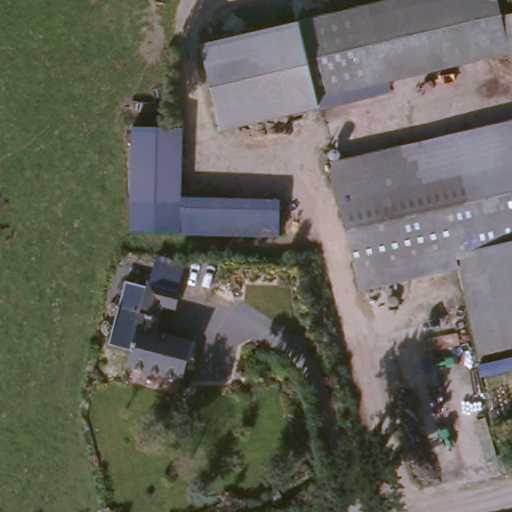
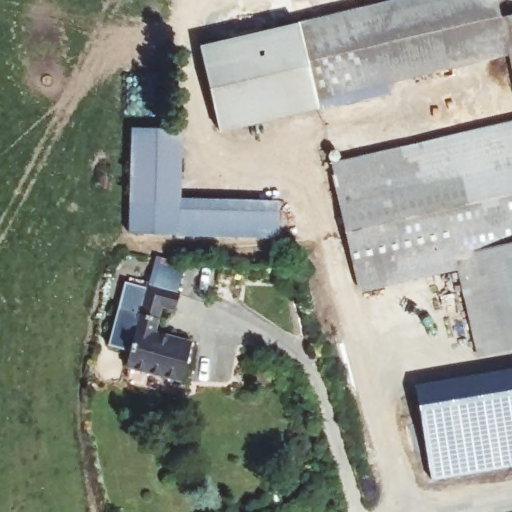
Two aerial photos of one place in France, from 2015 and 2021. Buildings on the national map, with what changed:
unchanged [(500,0),(509,40),(393,66),(398,87),(324,104),(319,82),(304,17),(383,0),(500,0)]
unchanged [(512,25),(509,12),(512,12),(512,25)]
unchanged [(324,104),(324,106),(224,127),(206,40),(304,17),(319,82),(324,104)]
unchanged [(512,131),(512,344),(484,351),(482,351),(469,291),(370,312),(364,283),(339,172),(512,131)]
unchanged [(179,136),(176,200),(279,206),(276,242),(121,241),(127,132),(179,136)]
unchanged [(209,353),(196,377),(189,373),(184,383),(134,357),(142,342),(124,333),(154,282),(172,291),(176,282),(206,297),(198,312),(184,305),(169,332),(209,353)]
new [(414,383),(512,367),(512,466),(431,480),(414,383)]

